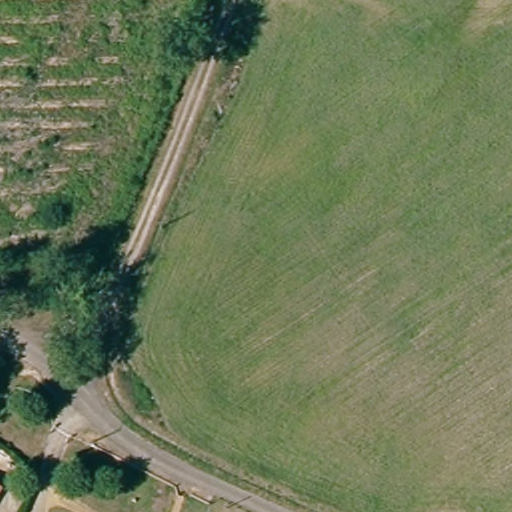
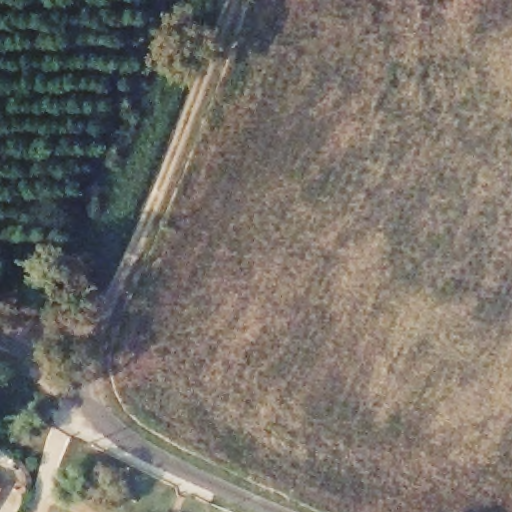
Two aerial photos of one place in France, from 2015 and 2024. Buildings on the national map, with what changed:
unchanged [(0,492),(0,487),(2,489),(0,492)]

